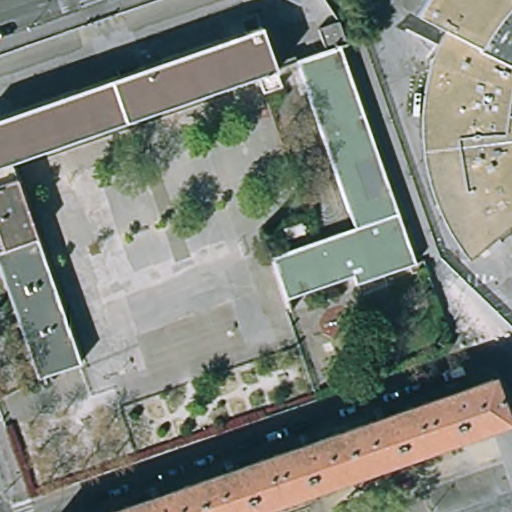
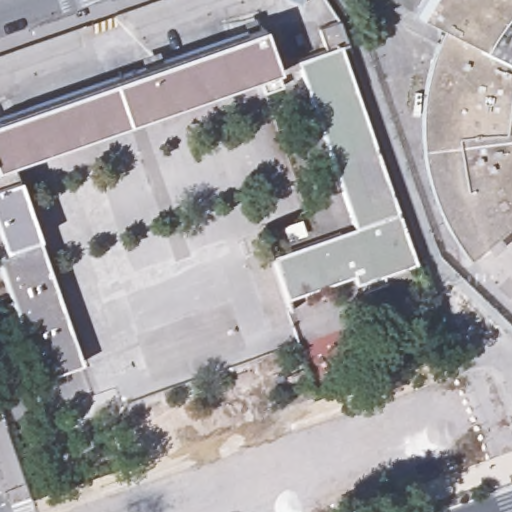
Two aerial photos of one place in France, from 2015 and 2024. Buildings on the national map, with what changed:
unchanged [(296,5),(289,0),(300,0),(296,5)]
unchanged [(471,261),(462,250),(454,237),(447,226),(440,212),(434,199),(430,186),(426,172),(423,157),(422,143),(421,129),(421,115),(422,100),(424,86),(427,72),(432,58),(437,45),(443,32),(413,16),(417,6),(420,0),(512,0),(512,227),(471,261)]
unchanged [(280,92),(261,99),(255,80),(10,167),(51,279),(7,294),(0,275),(0,121),(258,29),(280,92)]
unchanged [(344,52),(421,267),(378,282),(374,270),(291,299),(279,263),(361,234),(301,67),(344,52)]
unchanged [(82,368),(38,384),(7,294),(51,279),(82,368)]
demolished [(138,496),(152,491),(155,500),(216,478),(212,470),(228,464),(231,473),(291,452),(288,443),(305,437),(307,447),(364,427),(361,417),(375,412),(379,422),(440,401),(436,391),(450,386),(454,396),(485,383),(499,424),(250,512),(120,512),(140,505),(138,496)]

